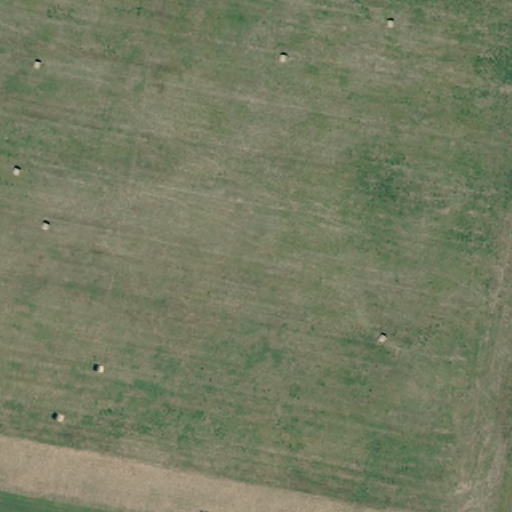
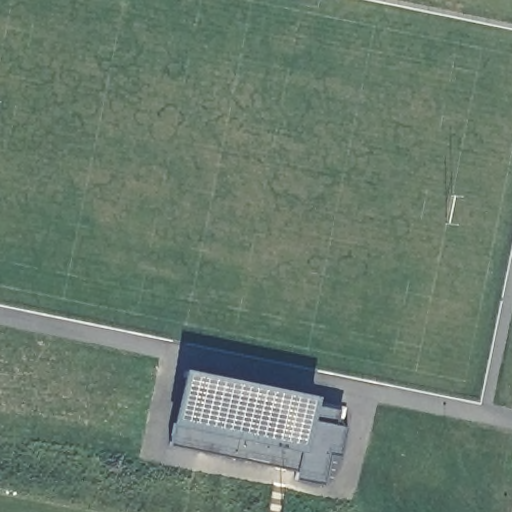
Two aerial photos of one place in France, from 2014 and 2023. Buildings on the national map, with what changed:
new [(319,398),(344,405),(341,424),(345,426),(340,456),(329,454),(323,484),(295,479),(297,471),(171,444),(174,423),(185,369),(319,398)]

